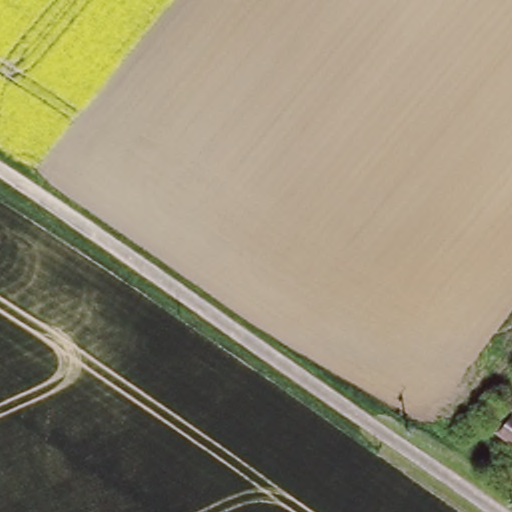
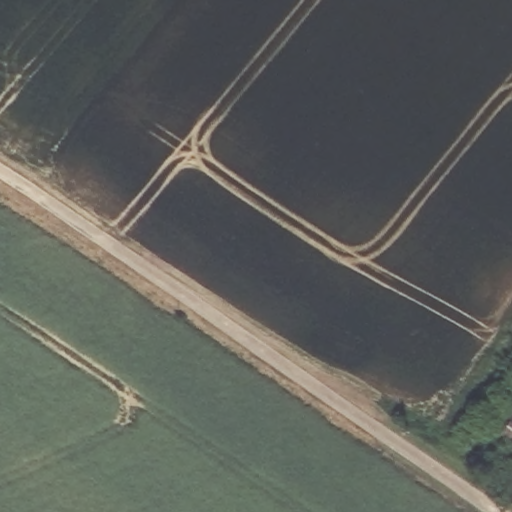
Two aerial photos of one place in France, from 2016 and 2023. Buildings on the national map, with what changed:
unchanged [(496,430),(512,412),(512,445),(496,430)]

